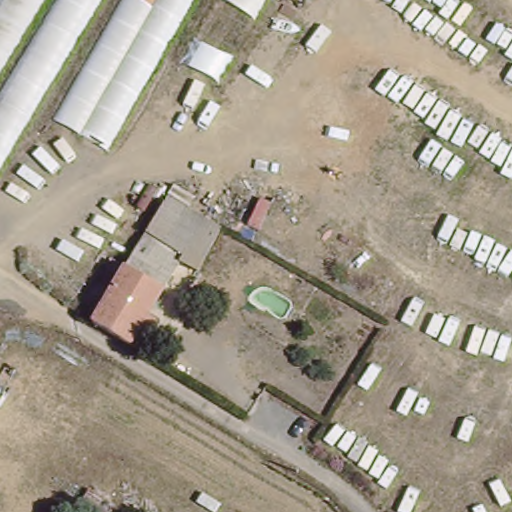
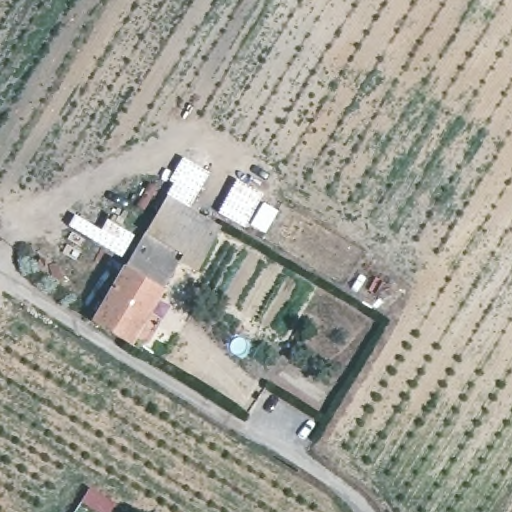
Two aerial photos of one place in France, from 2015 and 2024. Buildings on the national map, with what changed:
demolished [(180,0),(100,142),(37,112),(0,165),(0,0),(180,0)]
demolished [(200,11),(235,31),(191,107),(157,87),(200,11)]
unchanged [(175,184),(199,198),(194,206),(223,227),(200,269),(187,257),(175,250),(193,218),(170,205),(161,222),(156,219),(175,184)]
unchanged [(139,339),(99,315),(156,219),(161,222),(170,205),(193,218),(175,250),(187,257),(139,339)]
unchanged [(90,487),(117,504),(112,512),(96,512),(81,503),(90,487)]

